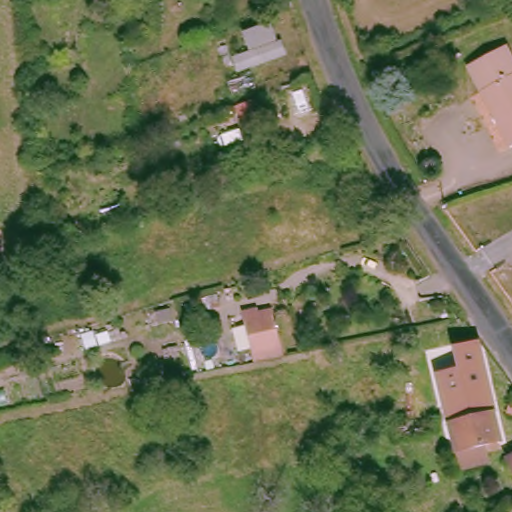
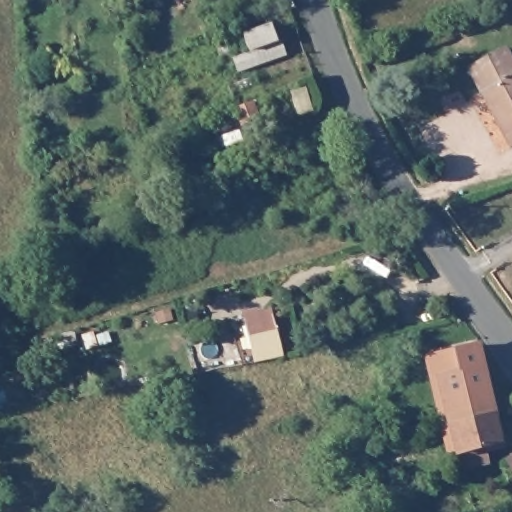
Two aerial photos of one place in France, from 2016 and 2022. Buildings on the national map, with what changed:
unchanged [(250,52),(247,38),(273,29),(277,41),(285,39),(288,53),(238,70),(236,57),(250,52)]
unchanged [(505,49),(512,62),(512,148),(467,70),(505,49)]
unchanged [(278,322),(284,353),(257,359),(251,327),(278,322)]
unchanged [(452,432),(448,416),(441,382),(457,377),(453,356),(482,350),(498,419),(452,432)]
unchanged [(462,472),(460,459),(452,432),(498,419),(505,446),(490,451),(493,465),(462,472)]
unchanged [(507,467),(512,464),(512,476),(507,467)]

